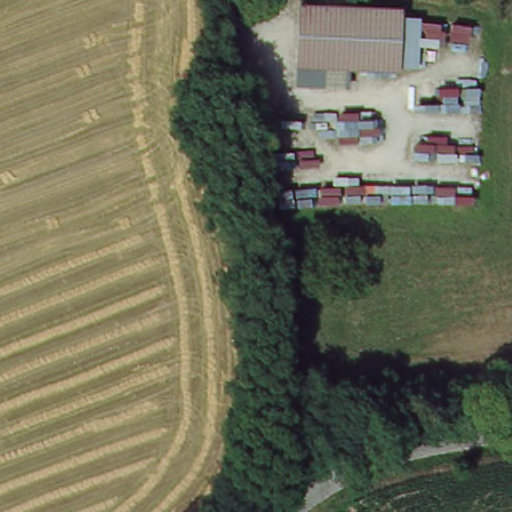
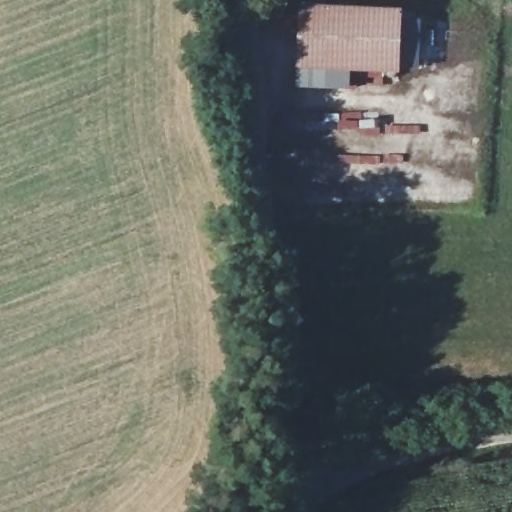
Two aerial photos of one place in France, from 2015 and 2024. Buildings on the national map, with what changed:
unchanged [(303,5),(401,6),(401,66),(301,65),(303,5)]

